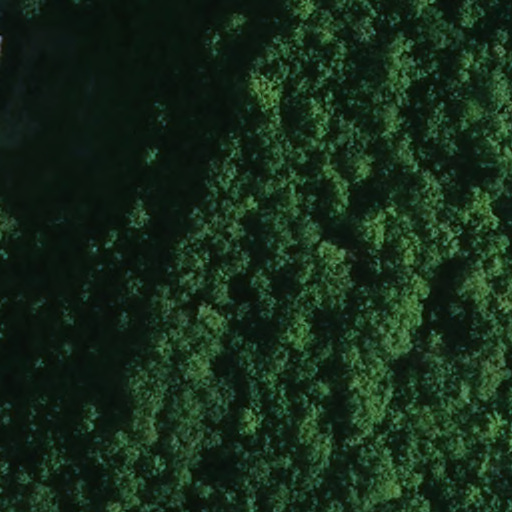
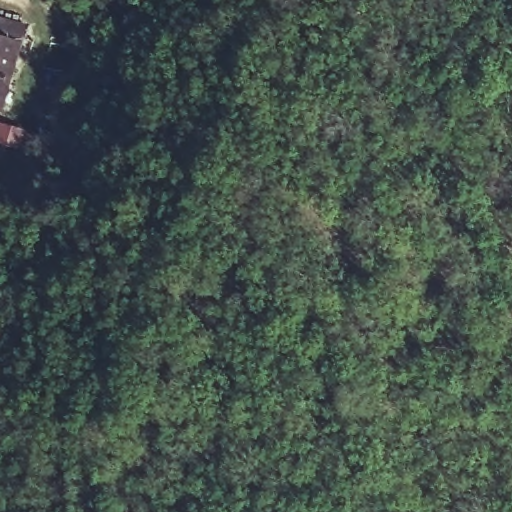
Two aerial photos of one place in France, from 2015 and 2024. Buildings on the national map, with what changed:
unchanged [(0,110),(0,23),(24,30),(0,110)]

